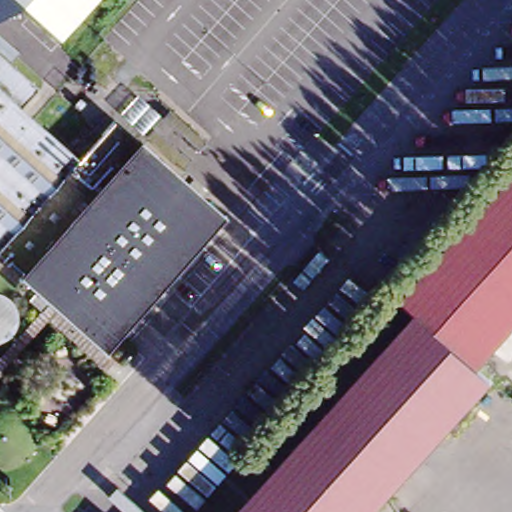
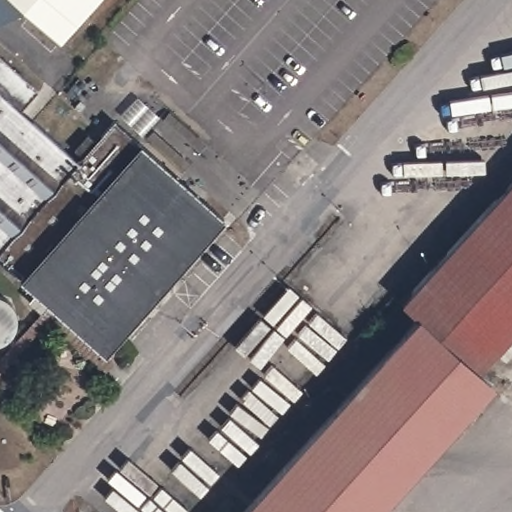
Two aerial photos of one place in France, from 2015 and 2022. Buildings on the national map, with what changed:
unchanged [(61,46),(9,0),(102,0),(61,46)]
unchanged [(40,92),(21,112),(78,162),(114,121),(224,220),(103,354),(23,282),(26,277),(0,256),(0,57),(40,92)]
unchanged [(303,152),(317,166),(301,183),(287,170),(303,152)]
unchanged [(512,182),(512,333),(485,362),(497,374),(491,380),(493,382),(376,512),(244,512),(389,352),(373,336),(512,182)]
unchanged [(48,327),(0,381),(0,357),(46,306),(127,377),(118,388),(48,327)]

